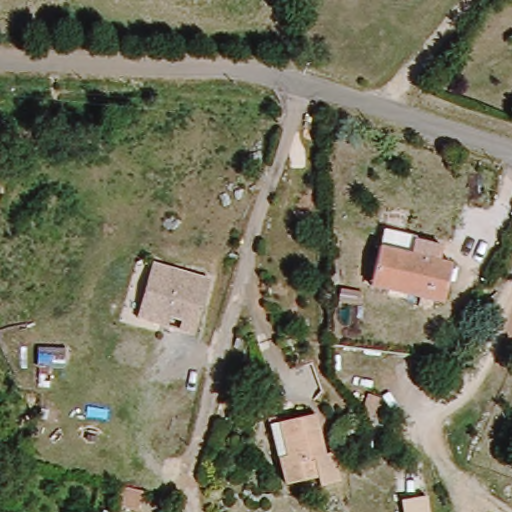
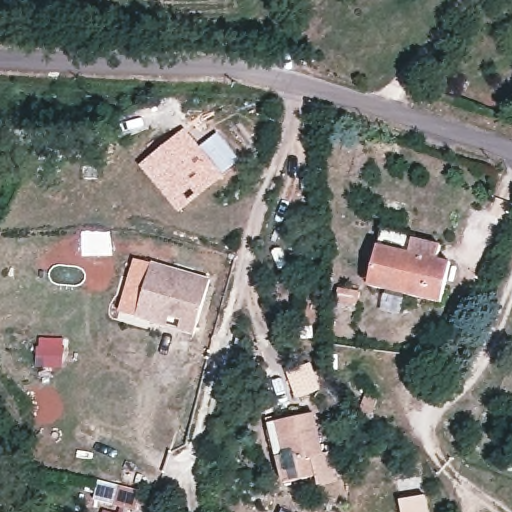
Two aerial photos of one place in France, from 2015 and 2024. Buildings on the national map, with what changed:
new [(199,146),(216,131),(239,159),(223,174),(178,212),(139,165),(183,127),(199,146)]
unchanged [(383,238),(449,258),(438,297),(371,276),(383,238)]
unchanged [(204,286),(188,338),(173,333),(176,324),(157,318),(154,328),(131,320),(148,268),(204,286)]
unchanged [(266,419),(316,407),(323,445),(331,443),(339,477),(321,481),(318,472),(281,480),(266,419)]
unchanged [(430,512),(403,512),(399,479),(424,474),(428,496),(430,512)]
unchanged [(106,501),(109,485),(111,475),(141,481),(138,491),(135,508),(106,501)]

